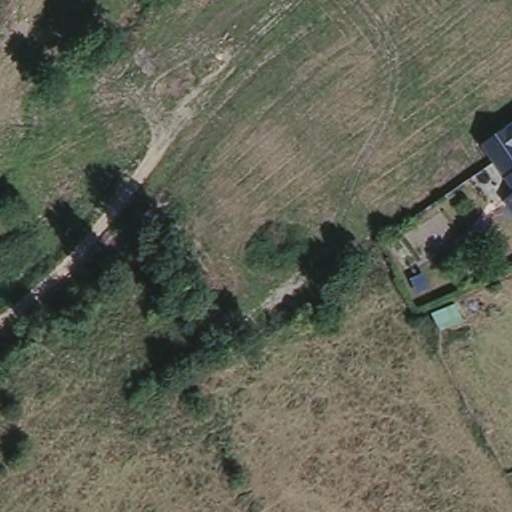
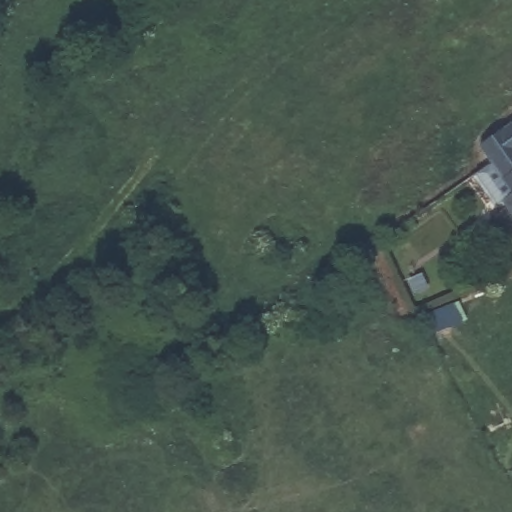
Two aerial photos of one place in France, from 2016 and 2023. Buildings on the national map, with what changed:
unchanged [(512,127),(512,133),(510,130),(512,127)]
unchanged [(503,163),(491,140),(510,130),(512,133),(512,176),(503,163)]
unchanged [(506,197),(512,193),(512,207),(506,197)]

